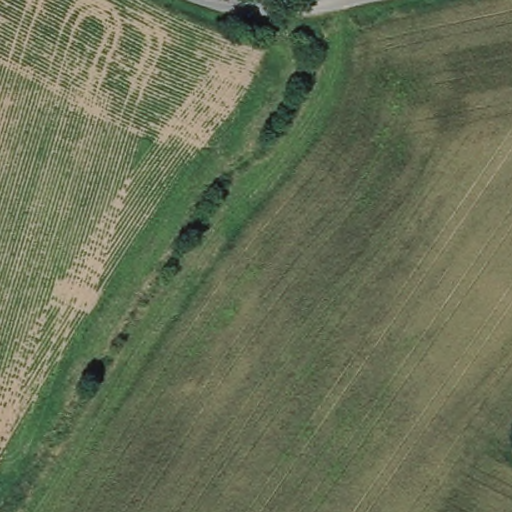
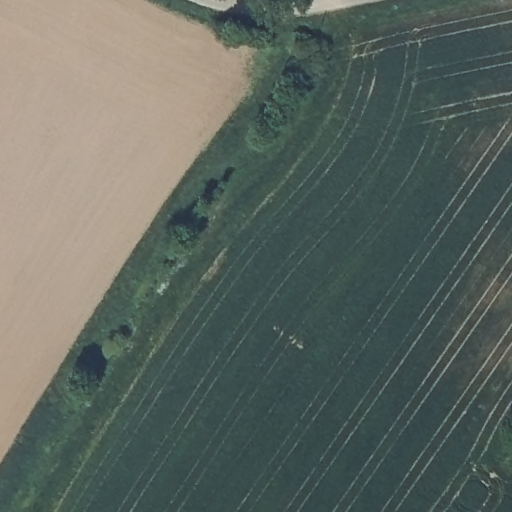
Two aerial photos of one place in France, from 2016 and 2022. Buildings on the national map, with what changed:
[]

